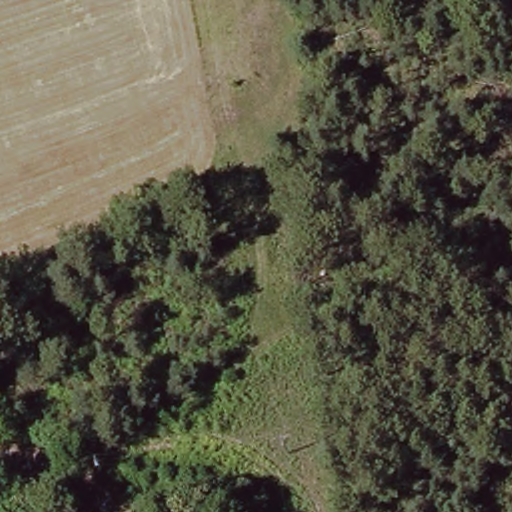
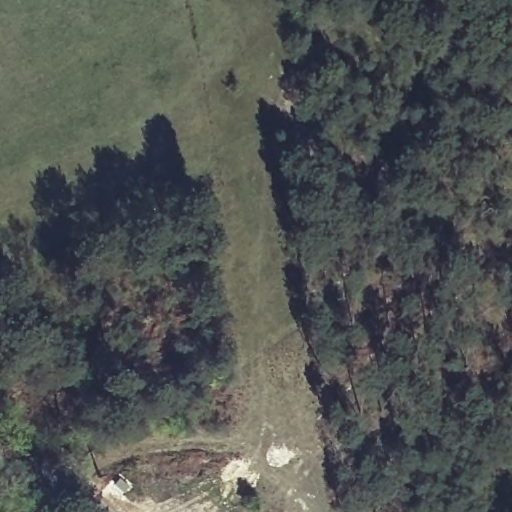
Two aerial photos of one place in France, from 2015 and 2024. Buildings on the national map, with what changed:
[]

